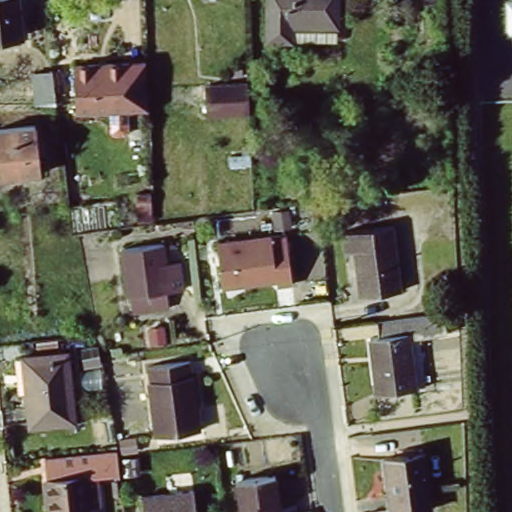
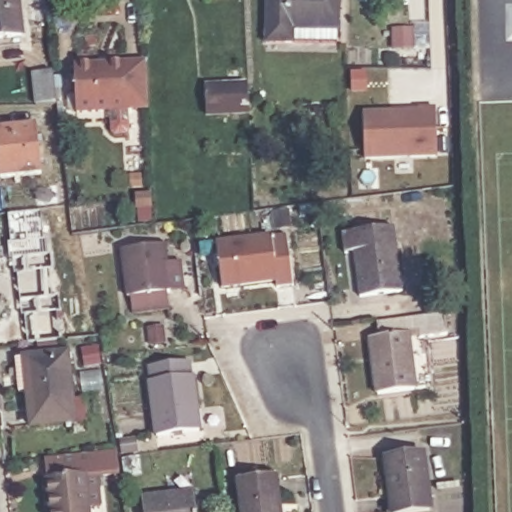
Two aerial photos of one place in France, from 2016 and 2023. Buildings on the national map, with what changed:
unchanged [(0,34),(0,0),(14,0),(17,32),(0,34)]
unchanged [(262,36),(263,0),(333,0),(332,23),(332,39),(287,37),(262,36)]
demolished [(425,0),(439,0),(439,5),(425,5),(425,0)]
unchanged [(65,114),(62,70),(138,65),(139,113),(65,114)]
unchanged [(28,79),(48,76),(52,110),(31,110),(28,79)]
unchanged [(197,115),(196,86),(239,85),(240,113),(197,115)]
new [(419,111),(419,109),(436,108),(437,156),(365,159),(364,113),(419,111)]
unchanged [(32,126),(36,174),(0,178),(0,129),(32,126)]
unchanged [(355,297),(350,252),(341,253),(339,233),(390,227),(399,292),(355,297)]
unchanged [(282,235),(288,285),(273,287),(272,280),(217,287),(212,244),(282,235)]
unchanged [(162,263),(175,262),(179,291),(165,292),(163,293),(165,309),(127,314),(125,297),(123,297),(117,250),(160,245),(162,263)]
unchanged [(415,338),(414,333),(404,334),(411,389),(372,394),(369,363),(365,338),(369,338),(374,337),(372,322),(440,314),(443,334),(415,338)]
unchanged [(17,384),(15,358),(22,357),(57,354),(64,421),(22,425),(17,384)]
unchanged [(152,431),(143,362),(185,357),(195,426),(152,431)]
unchanged [(93,476),(97,506),(84,507),(85,512),(46,512),(40,459),(112,452),(115,473),(93,476)]
unchanged [(381,459),(419,454),(426,510),(411,512),(388,512),(381,459)]
unchanged [(228,476),(266,471),(271,512),(233,512),(228,476)]
unchanged [(192,512),(139,512),(137,498),(190,491),(192,512)]

